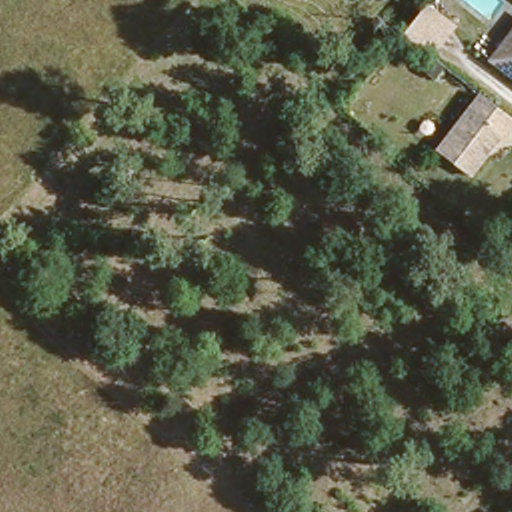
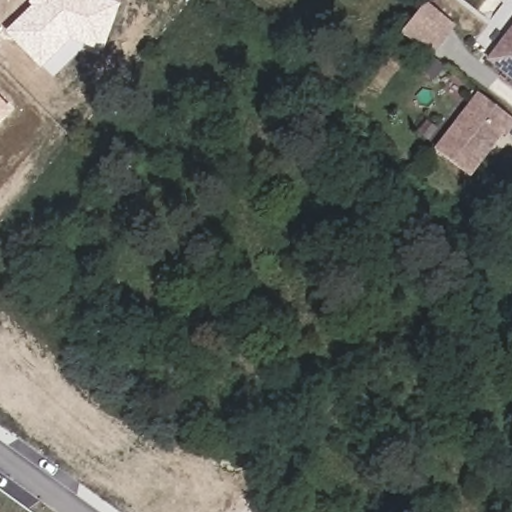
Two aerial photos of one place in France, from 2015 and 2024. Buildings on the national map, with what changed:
new [(31,6),(29,3),(31,0),(110,0),(120,4),(103,52),(71,41),(41,68),(5,32),(31,6)]
unchanged [(418,4),(444,26),(422,55),(394,34),(418,4)]
unchanged [(512,26),(512,83),(486,64),(512,26)]
unchanged [(507,119),(512,123),(512,127),(504,138),(501,136),(468,179),(434,153),(478,97),(507,119)]
new [(0,120),(0,99),(10,110),(0,120)]

